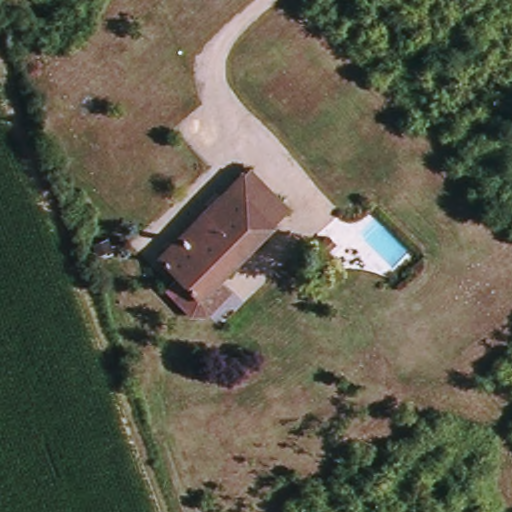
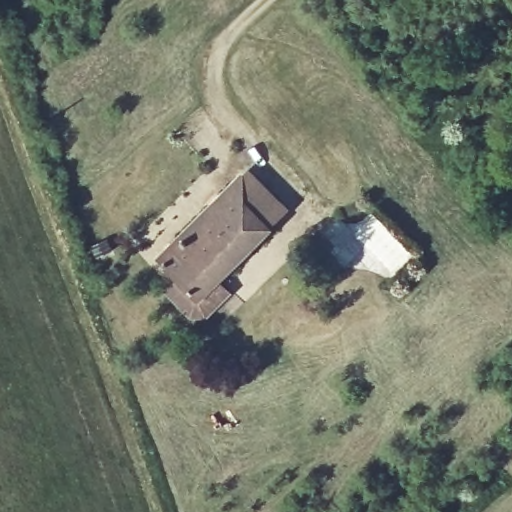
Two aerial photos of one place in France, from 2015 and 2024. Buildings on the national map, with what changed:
unchanged [(245,171),(285,215),(267,231),(226,191),(245,171)]
unchanged [(267,231),(198,300),(158,260),(226,191),(267,231)]

